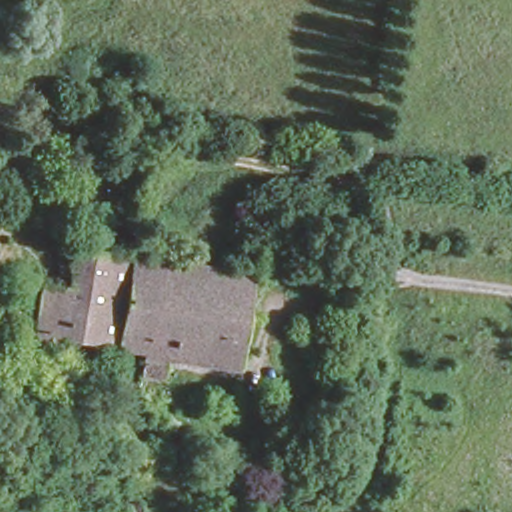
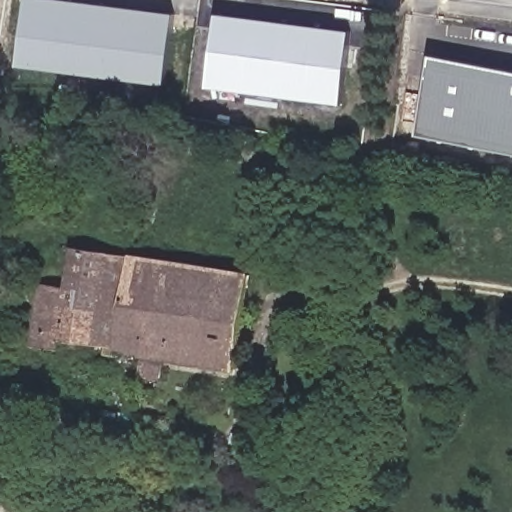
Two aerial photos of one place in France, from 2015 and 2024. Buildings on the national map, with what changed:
new [(69,0),(173,13),(165,84),(17,67),(24,0),(69,0)]
new [(355,32),(345,105),(210,87),(220,15),(355,32)]
new [(512,155),(419,137),(434,55),(512,69),(512,155)]
unchanged [(40,348),(22,344),(31,285),(59,289),(66,241),(246,268),(230,361),(111,343),(110,351),(99,350),(100,342),(53,334),(50,350),(40,348)]

